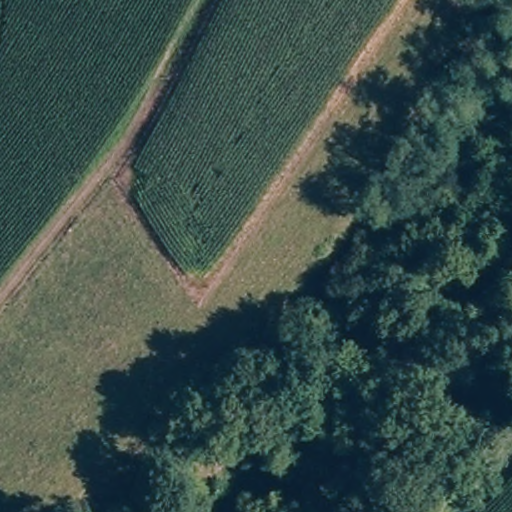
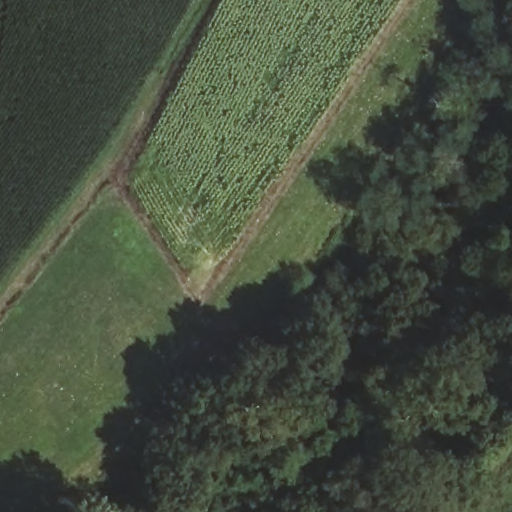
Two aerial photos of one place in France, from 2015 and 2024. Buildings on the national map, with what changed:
[]

